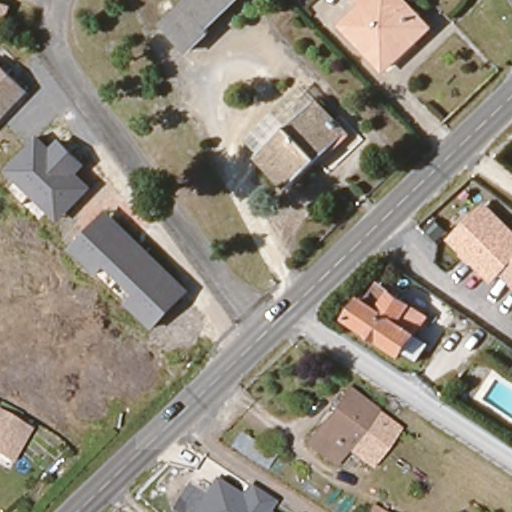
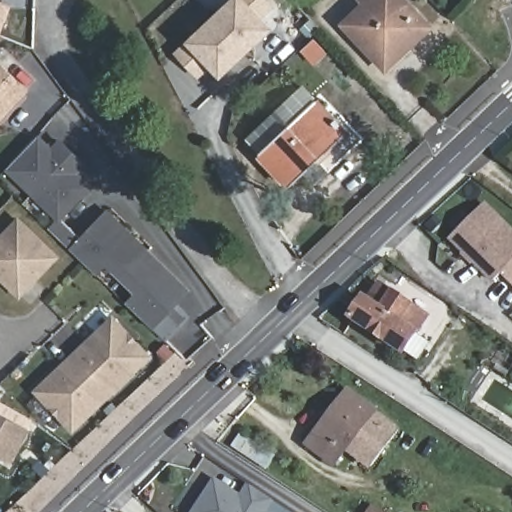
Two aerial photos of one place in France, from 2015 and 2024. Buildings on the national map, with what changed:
demolished [(203,31),(206,36),(190,51),(167,26),(193,0),(224,0),(231,5),(203,31)]
new [(232,0),(271,0),(276,6),(261,19),(271,30),(220,76),(211,65),(199,76),(178,54),(232,0)]
demolished [(224,0),(236,0),(231,5),(224,0)]
unchanged [(341,21),(361,1),(361,0),(409,0),(430,23),(411,43),(386,68),(379,61),(341,21)]
unchanged [(2,33),(0,32),(0,2),(12,7),(2,33)]
unchanged [(24,89),(0,114),(0,66),(24,89)]
unchanged [(251,138),(307,85),(320,98),(263,151),(251,138)]
unchanged [(320,98),(351,129),(293,183),(263,151),(320,98)]
unchanged [(50,147),(59,136),(87,163),(77,173),(92,185),(59,223),(3,171),(38,134),(50,147)]
unchanged [(153,328),(123,302),(132,293),(102,266),(96,275),(68,248),(107,209),(190,288),(153,328)]
unchanged [(493,284),(451,242),(485,209),(512,236),(512,285),(502,276),(493,284)]
new [(19,299),(0,280),(0,234),(17,216),(59,257),(19,299)]
unchanged [(350,320),(365,298),(371,302),(382,288),(432,320),(407,357),(350,320)]
new [(73,433),(31,391),(111,314),(152,357),(73,433)]
unchanged [(343,455),(335,465),(312,449),(350,397),(374,415),(343,455)]
unchanged [(398,433),(368,473),(343,455),(374,415),(398,433)]
unchanged [(24,433),(10,463),(0,457),(0,419),(24,433)]
demolished [(266,470),(229,449),(241,430),(276,450),(266,470)]
demolished [(185,449),(199,463),(162,497),(147,481),(173,456),(182,447),(185,449)]
unchanged [(214,476),(240,494),(247,482),(277,501),(271,512),(191,512),(214,476)]
unchanged [(377,512),(372,512),(373,510),(377,512)]

